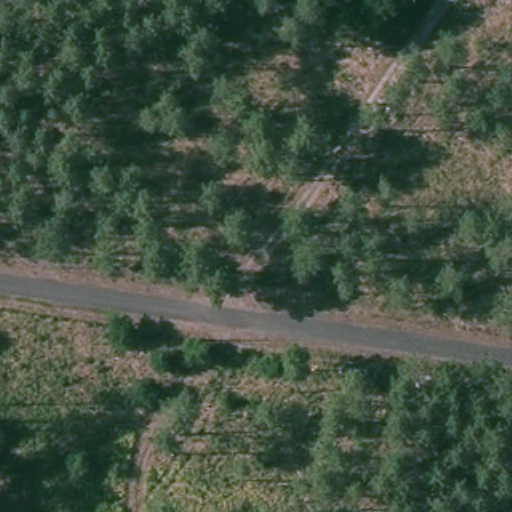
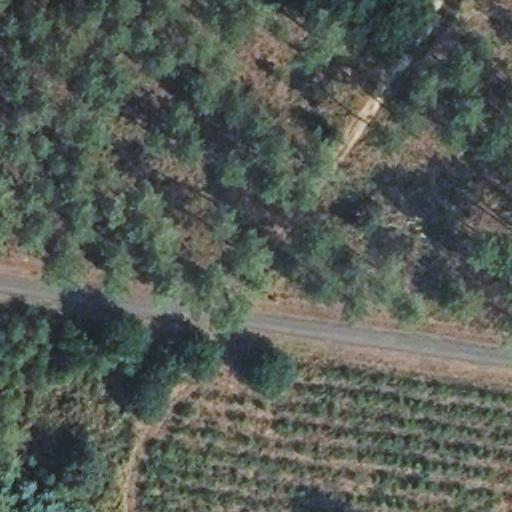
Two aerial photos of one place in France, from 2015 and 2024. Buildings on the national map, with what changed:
[]

